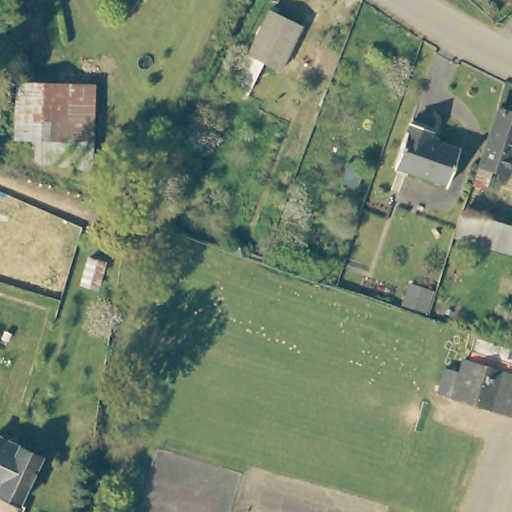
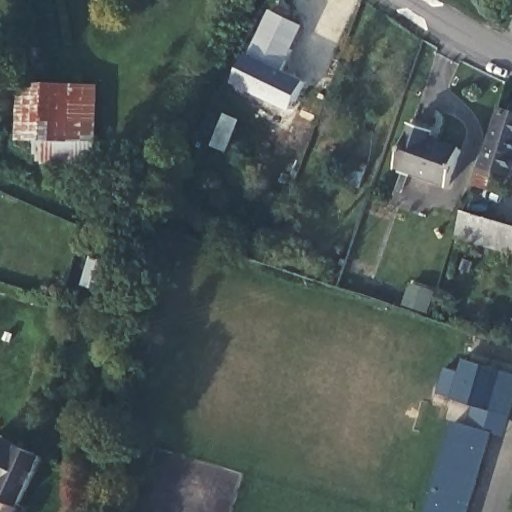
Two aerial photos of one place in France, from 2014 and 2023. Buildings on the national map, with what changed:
unchanged [(233,94),(246,61),(265,12),(298,26),(280,73),(259,66),(245,100),(233,94)]
unchanged [(94,87),(88,171),(36,160),(30,139),(14,137),(18,81),(94,87)]
unchanged [(501,115),(512,120),(512,169),(507,184),(478,171),(497,115),(501,115)]
unchanged [(430,135),(426,143),(456,157),(441,190),(392,169),(410,126),(430,135)]
unchanged [(512,227),(512,255),(456,237),(464,210),(512,227)]
unchanged [(250,237),(246,250),(235,245),(238,234),(250,237)]
new [(90,260),(105,265),(96,287),(81,282),(90,260)]
unchanged [(512,379),(512,417),(511,421),(439,396),(449,371),(463,376),(468,363),(512,379)]
new [(494,435),(470,512),(428,512),(455,424),(494,435)]
unchanged [(21,506),(0,500),(0,496),(1,492),(0,492),(0,444),(37,454),(21,506)]

